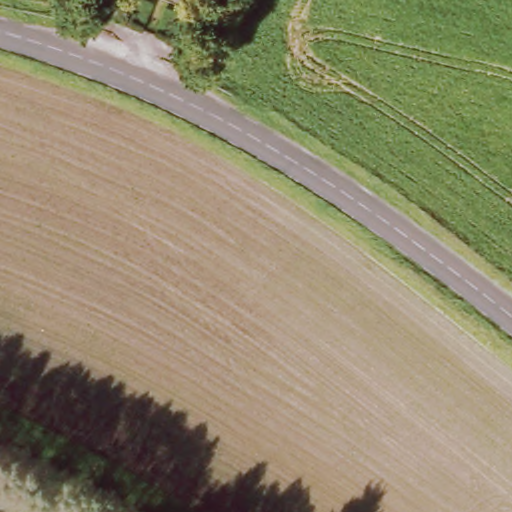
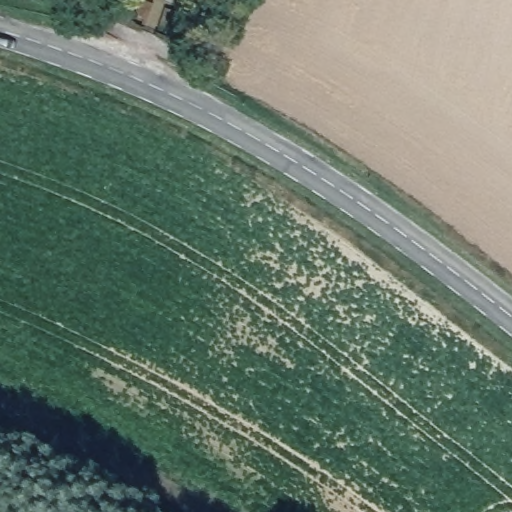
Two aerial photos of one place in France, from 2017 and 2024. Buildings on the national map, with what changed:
unchanged [(162,7),(164,0),(180,0),(177,11),(162,7)]

